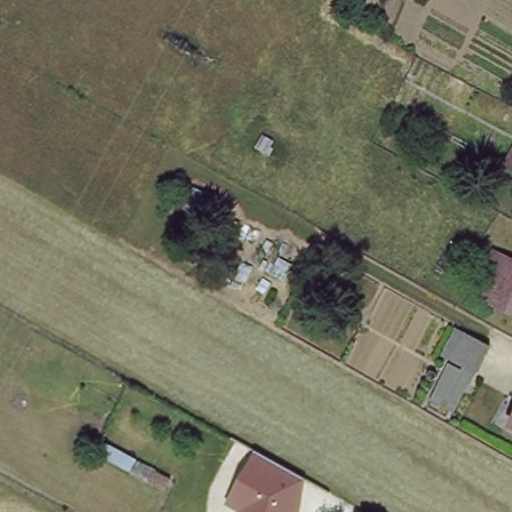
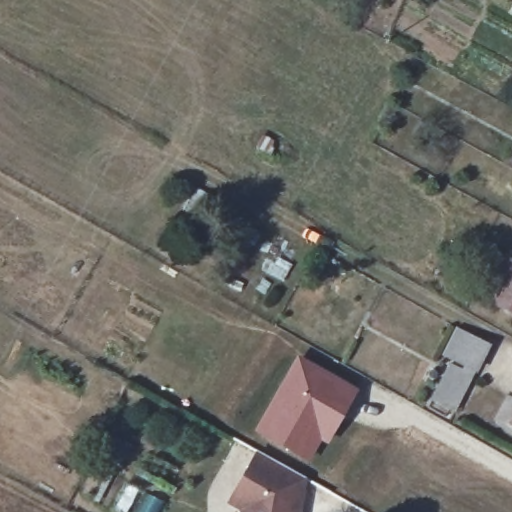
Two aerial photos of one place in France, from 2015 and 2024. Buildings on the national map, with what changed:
unchanged [(506,256),(512,259),(512,307),(510,311),(486,301),(506,256)]
unchanged [(465,342),(489,356),(475,380),(452,367),(465,342)]
new [(296,354),(360,389),(327,444),(321,441),(309,463),(251,432),(296,354)]
unchanged [(450,372),(471,386),(453,418),(432,406),(450,372)]
unchanged [(228,503),(256,452),(307,480),(301,512),(239,512),(239,510),(228,503)]

